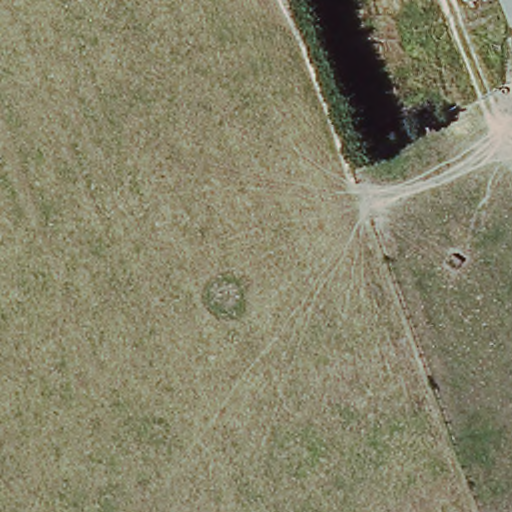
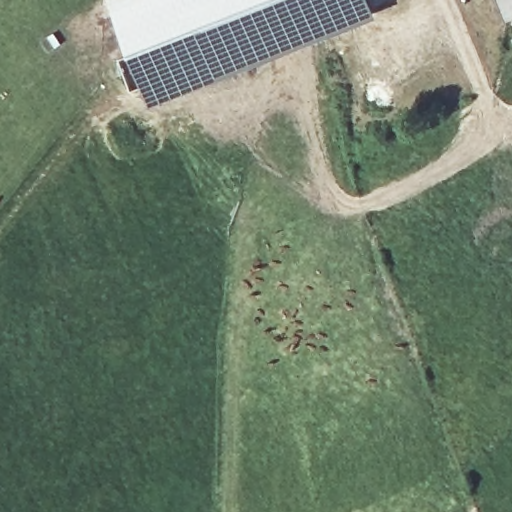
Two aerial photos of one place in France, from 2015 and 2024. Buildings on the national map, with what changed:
new [(379,16),(154,105),(145,86),(130,92),(116,60),(132,54),(111,0),(373,0),(379,16)]
unchanged [(502,0),(512,0),(512,13),(509,14),(502,0)]

